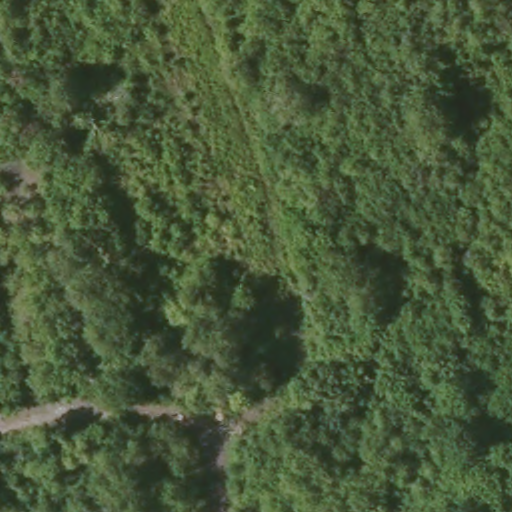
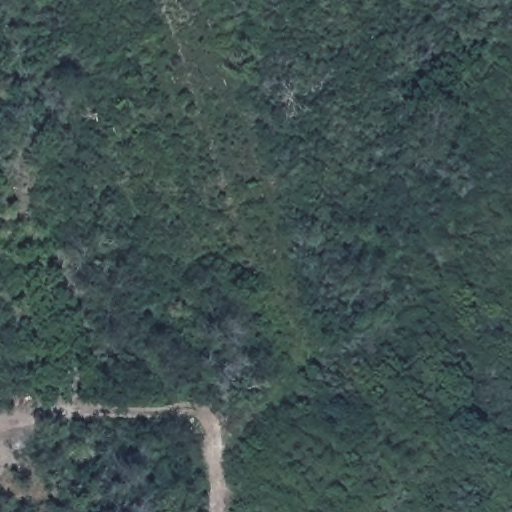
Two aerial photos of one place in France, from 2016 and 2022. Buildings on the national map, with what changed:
unchanged [(192,307),(199,321),(174,332),(167,318),(192,307)]

